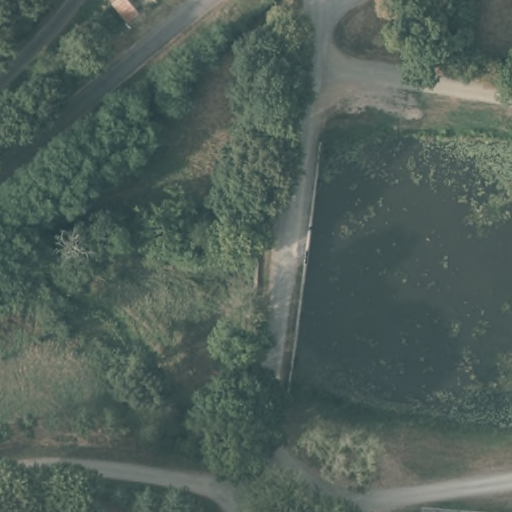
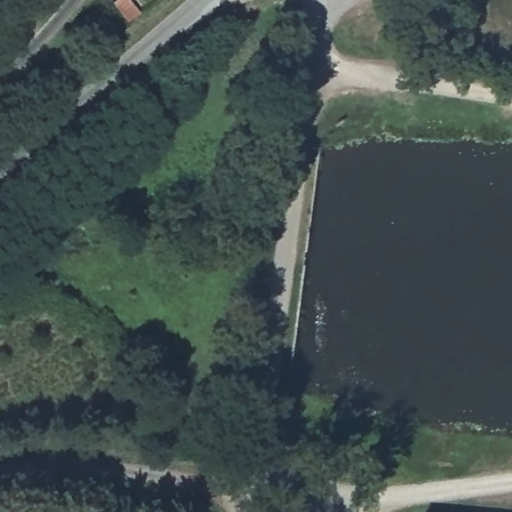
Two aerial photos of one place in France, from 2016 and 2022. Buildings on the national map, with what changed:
unchanged [(109,0),(128,0),(136,10),(123,20),(109,0)]

